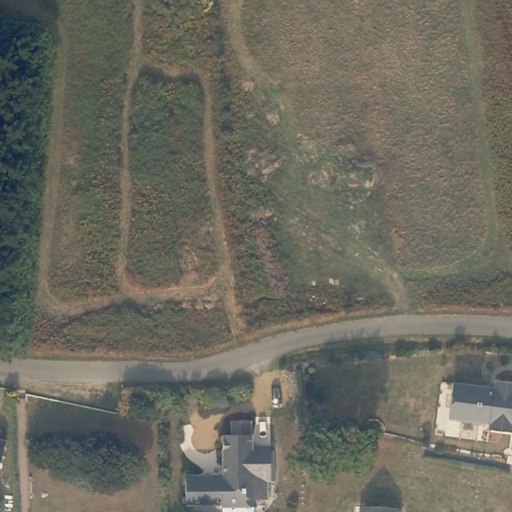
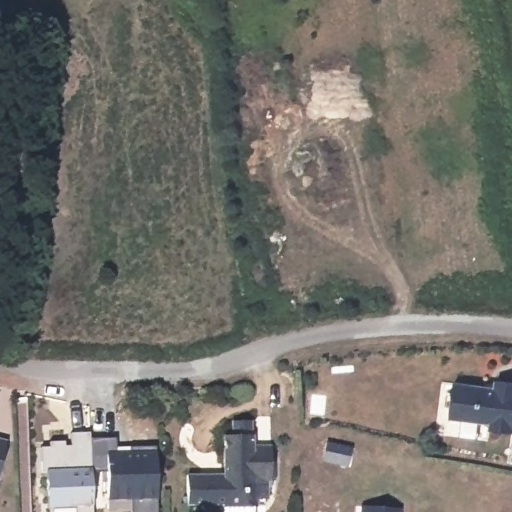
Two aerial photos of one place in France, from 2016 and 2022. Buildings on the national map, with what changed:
unchanged [(496,383),(497,376),(512,378),(512,428),(490,425),(491,419),(450,413),(454,378),(496,383)]
unchanged [(250,435),(250,446),(269,446),(269,480),(265,480),(265,499),(254,499),(254,506),(246,507),(246,512),(219,512),(219,507),(219,504),(185,505),(184,474),(222,474),(222,435),(230,435),(230,420),(250,420),(250,435)]
new [(92,505),(93,512),(76,512),(76,506),(48,507),(44,469),(40,469),(39,446),(49,446),(49,440),(64,440),(65,444),(70,444),(70,431),(90,430),(93,439),(94,467),(90,468),(92,505)]
unchanged [(4,441),(0,458),(0,436),(5,437),(4,441)]
new [(119,454),(133,454),(133,448),(159,447),(161,512),(134,512),(134,494),(110,494),(110,473),(94,473),(93,439),(119,439),(119,454)]
unchanged [(400,512),(361,512),(362,501),(401,503),(400,512)]

